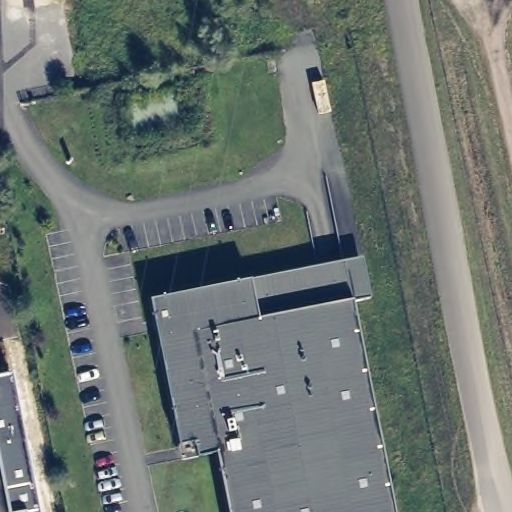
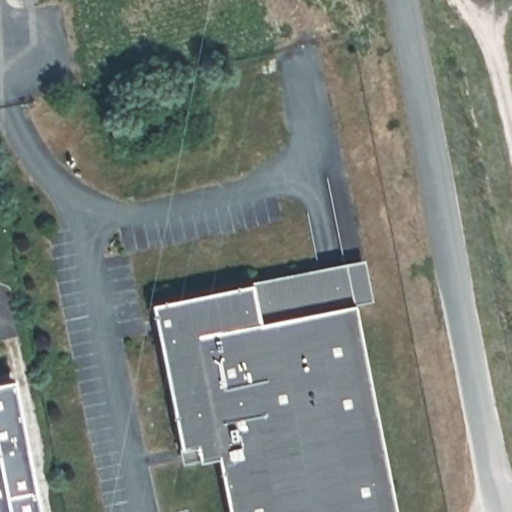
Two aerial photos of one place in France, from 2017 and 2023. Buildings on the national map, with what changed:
unchanged [(249,281),(363,260),(370,299),(352,302),(394,512),(230,512),(219,452),(199,457),(183,458),(180,445),(152,302),(249,281)]
unchanged [(12,374),(39,512),(0,512),(0,377),(12,374)]

